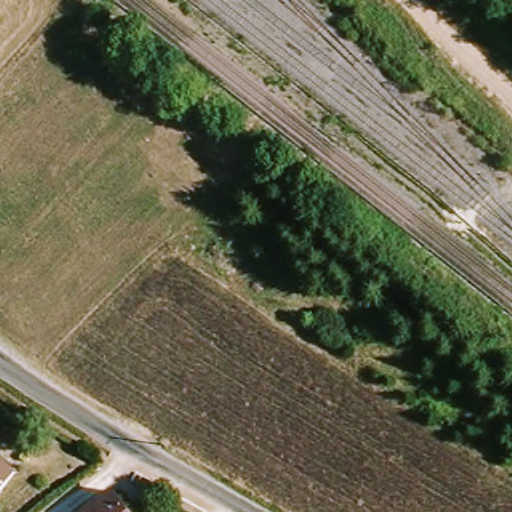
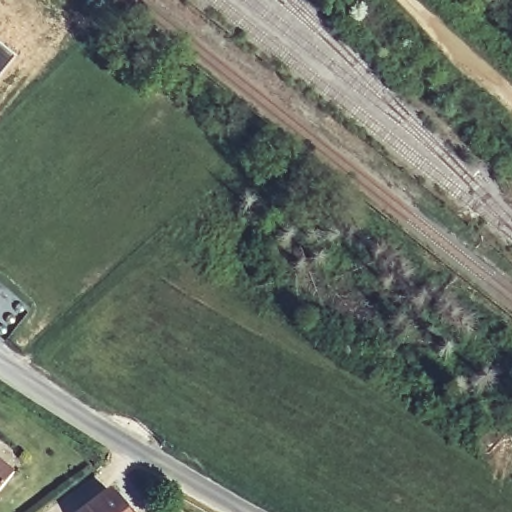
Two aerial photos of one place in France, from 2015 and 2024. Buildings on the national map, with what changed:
new [(17,56),(0,77),(0,42),(17,56)]
unchanged [(21,472),(0,496),(0,454),(21,472)]
unchanged [(117,495),(131,512),(94,512),(117,495)]

